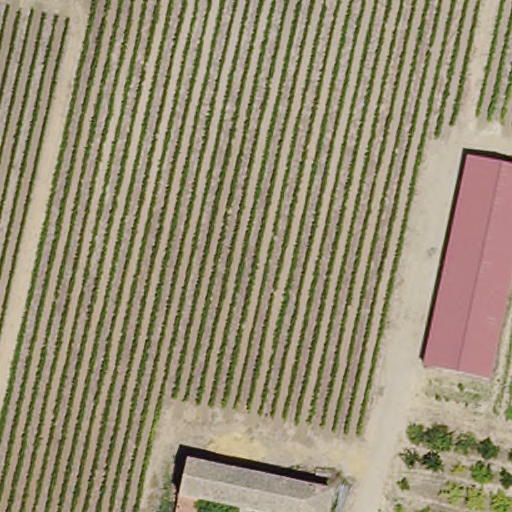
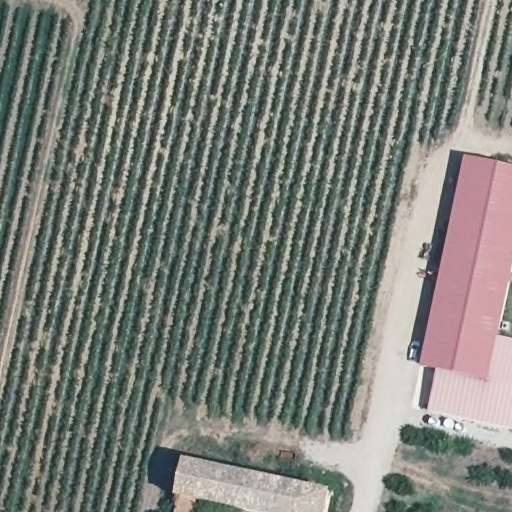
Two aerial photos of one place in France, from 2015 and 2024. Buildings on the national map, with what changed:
unchanged [(466,155),(512,164),(512,254),(488,377),(425,365),(466,155)]
new [(512,339),(512,432),(428,413),(440,368),(488,377),(496,336),(512,339)]
unchanged [(334,492),(330,512),(260,512),(195,497),(192,512),(171,512),(185,457),(334,492)]

